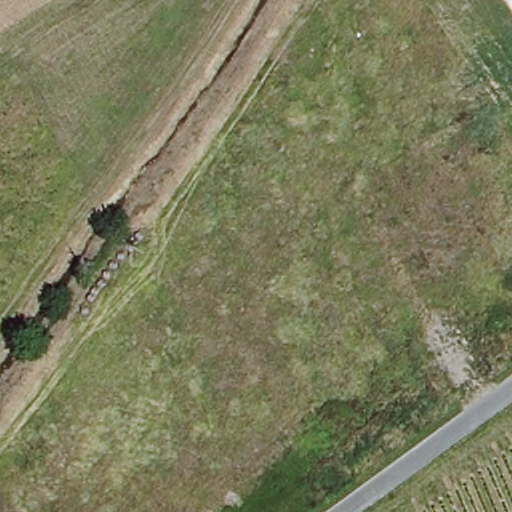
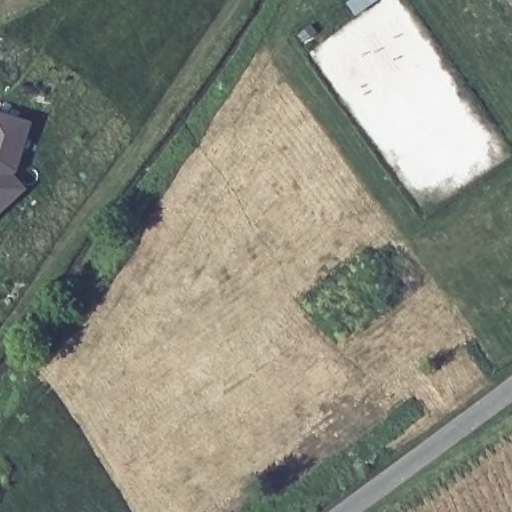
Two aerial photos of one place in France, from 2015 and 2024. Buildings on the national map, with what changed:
new [(32,121),(18,169),(14,175),(27,189),(0,213),(0,112),(32,121)]

